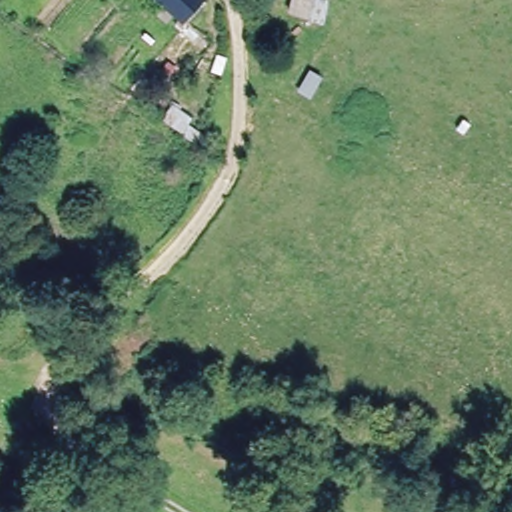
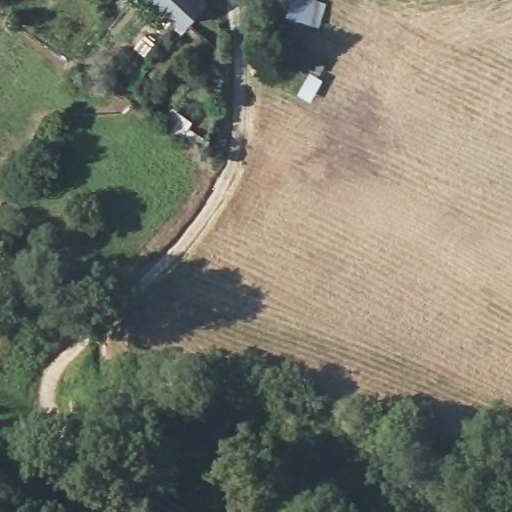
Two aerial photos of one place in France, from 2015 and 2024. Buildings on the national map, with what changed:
unchanged [(198,0),(178,22),(154,0),(198,0)]

